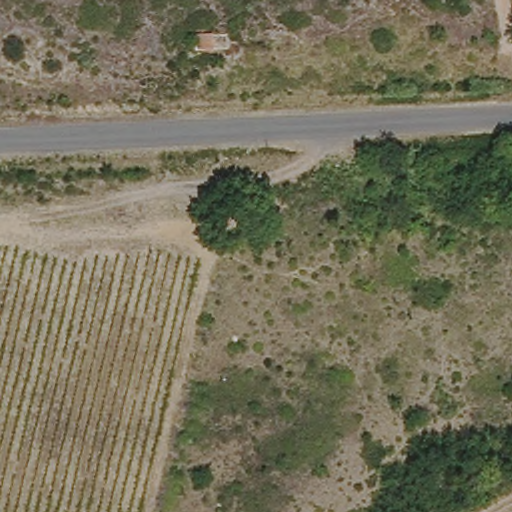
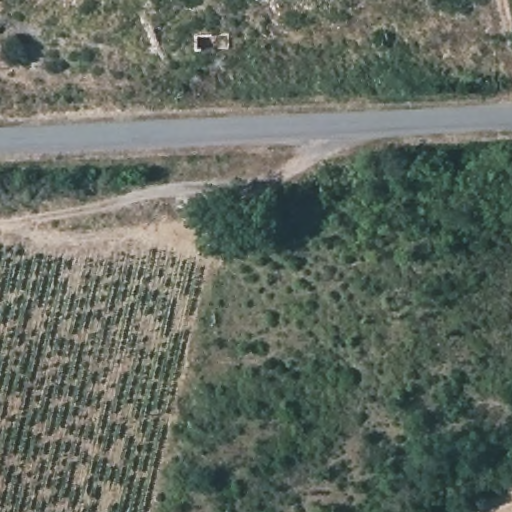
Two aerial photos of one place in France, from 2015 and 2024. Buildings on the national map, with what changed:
unchanged [(199,43),(215,42),(215,58),(197,62),(199,43)]

